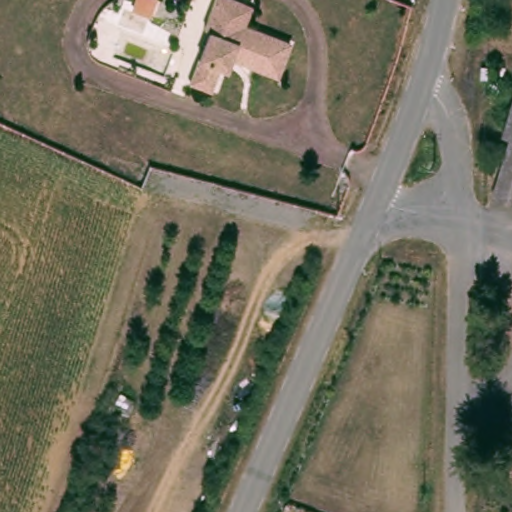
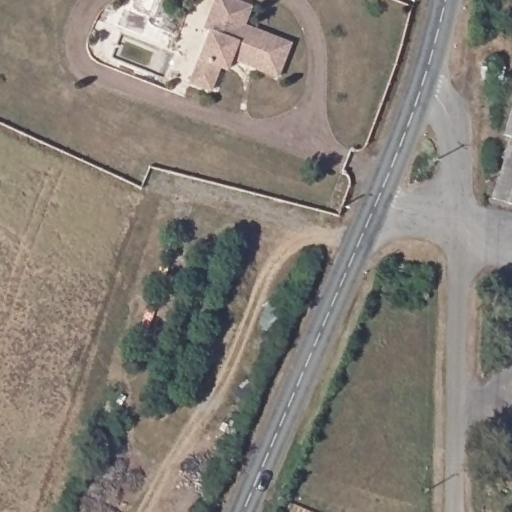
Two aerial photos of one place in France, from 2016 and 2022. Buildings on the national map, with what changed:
unchanged [(211,22),(207,20),(213,0),(252,0),(245,18),(291,36),(278,68),(233,49),(228,61),(221,59),(212,79),(191,71),(201,46),(211,22)]

